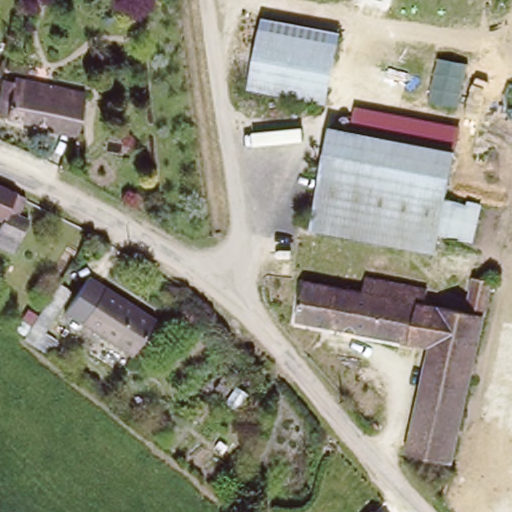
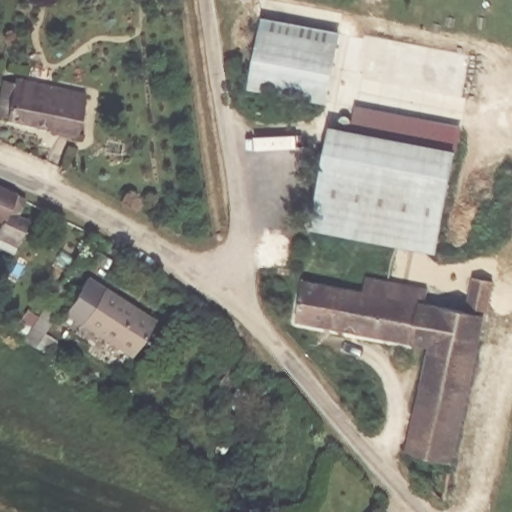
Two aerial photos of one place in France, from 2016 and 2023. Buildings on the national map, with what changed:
unchanged [(250,87),(263,29),(339,41),(329,100),(250,87)]
unchanged [(1,46),(0,50),(0,46),(1,46)]
unchanged [(13,80),(88,104),(78,140),(2,115),(13,80)]
unchanged [(342,115),(352,116),(354,105),(461,126),(454,153),(340,130),(342,115)]
unchanged [(335,129),(454,153),(450,201),(479,206),(473,237),(440,234),(437,249),(311,232),(335,129)]
unchanged [(19,218),(28,223),(15,243),(0,235),(0,228),(2,223),(0,222),(0,190),(27,203),(19,218)]
unchanged [(90,277),(105,287),(154,320),(133,356),(83,324),(65,312),(90,277)]
unchanged [(454,463),(408,452),(434,353),(307,323),(316,283),(335,288),(337,280),(355,285),(353,291),(362,293),(363,286),(375,289),(377,278),(439,292),(436,306),(470,314),(479,278),(493,280),(454,463)]
unchanged [(17,355),(7,346),(46,296),(56,304),(17,355)]
unchanged [(359,378),(352,403),(342,400),(347,375),(359,378)]
unchanged [(380,512),(377,512),(378,510),(380,512)]

